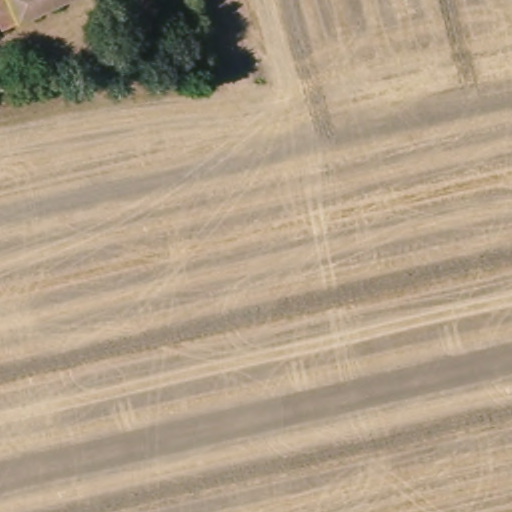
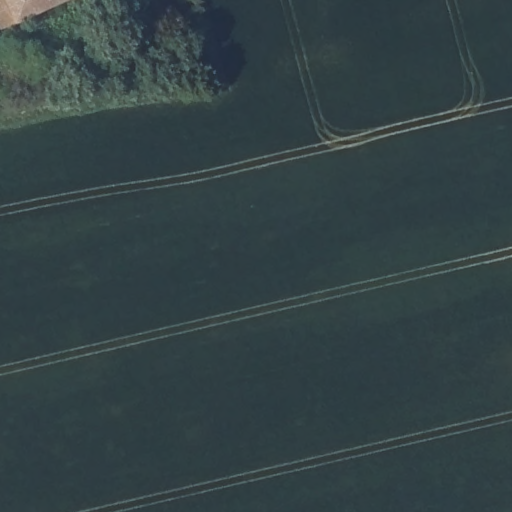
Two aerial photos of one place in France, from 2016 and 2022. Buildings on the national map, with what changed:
unchanged [(2,31),(0,26),(0,0),(80,0),(2,31)]

